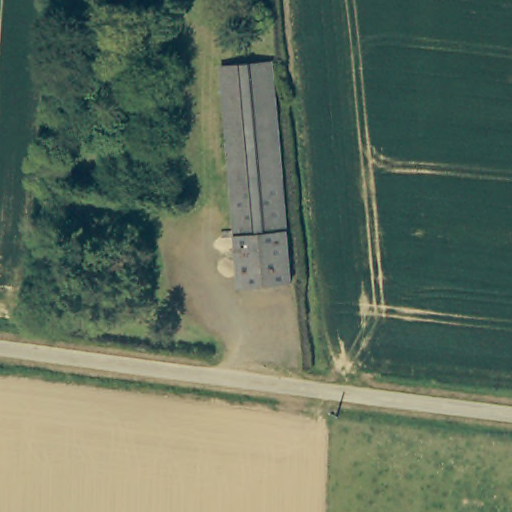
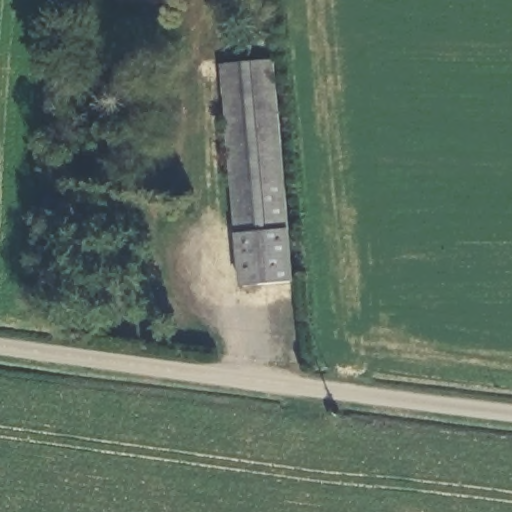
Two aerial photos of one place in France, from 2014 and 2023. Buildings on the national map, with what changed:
unchanged [(290,282),(240,286),(220,64),(270,60),(290,282)]

